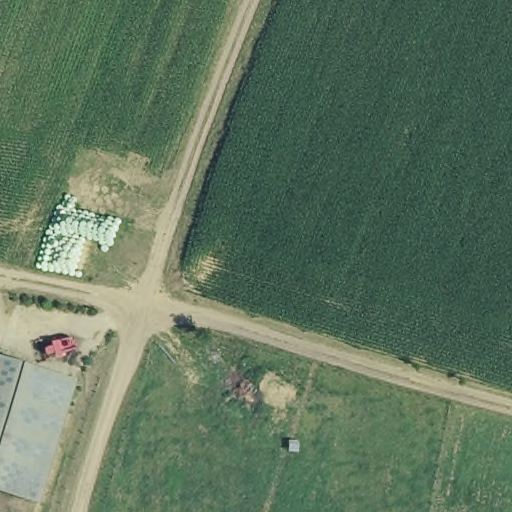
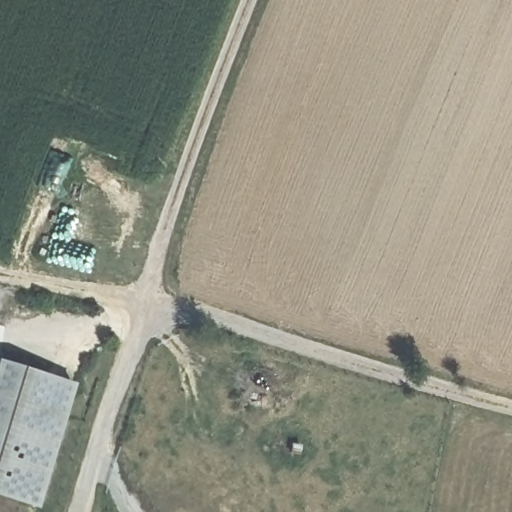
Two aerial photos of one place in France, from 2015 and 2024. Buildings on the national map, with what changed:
unchanged [(34,506),(0,495),(0,362),(72,383),(34,506)]

